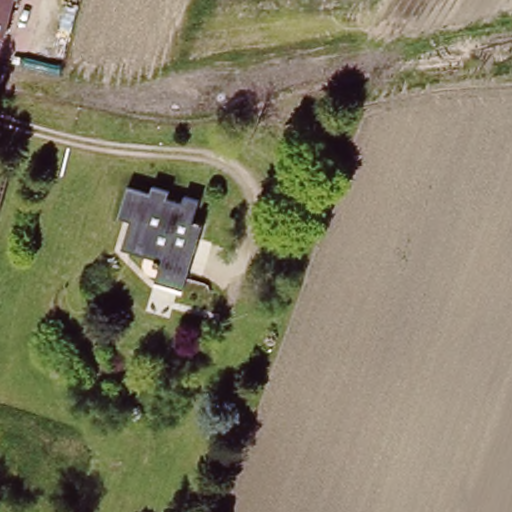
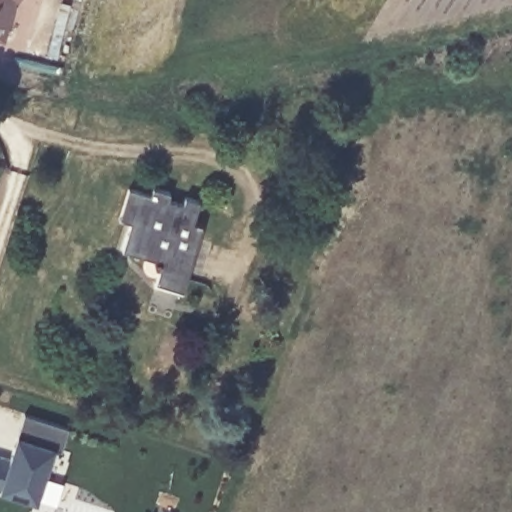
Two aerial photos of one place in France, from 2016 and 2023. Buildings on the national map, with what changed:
unchanged [(0,29),(0,0),(8,0),(0,29)]
unchanged [(158,269),(153,260),(120,250),(129,221),(122,220),(116,217),(126,186),(132,187),(149,193),(151,186),(168,191),(166,198),(181,203),(183,196),(199,200),(193,222),(201,225),(191,259),(182,290),(154,281),(158,269)]
new [(53,446),(36,500),(0,489),(0,455),(9,458),(16,433),(24,413),(67,426),(61,450),(53,446)]

